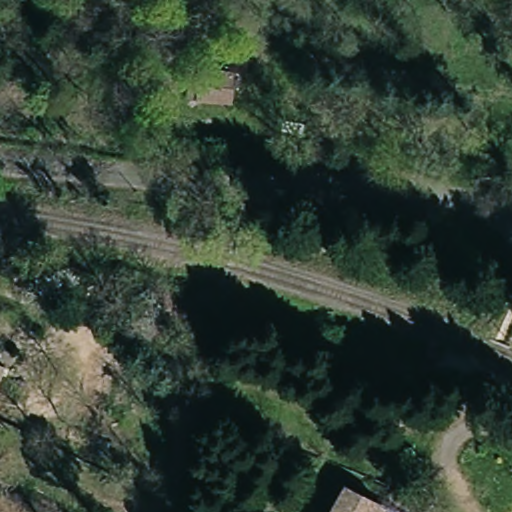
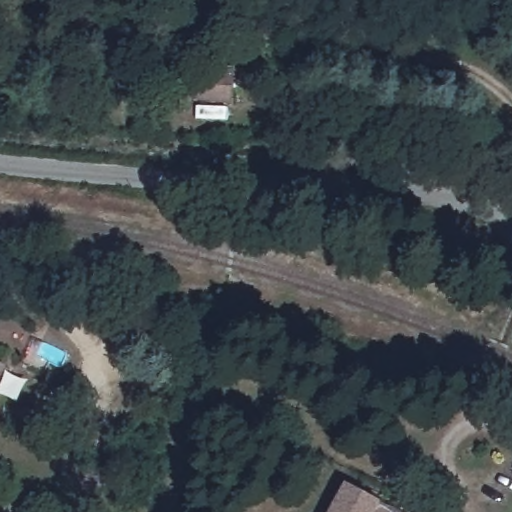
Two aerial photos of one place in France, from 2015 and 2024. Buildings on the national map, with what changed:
unchanged [(234,99),(199,101),(201,69),(235,72),(234,99)]
unchanged [(0,363),(7,366),(0,386),(0,363)]
unchanged [(349,483),(386,502),(380,512),(333,512),(349,483)]

